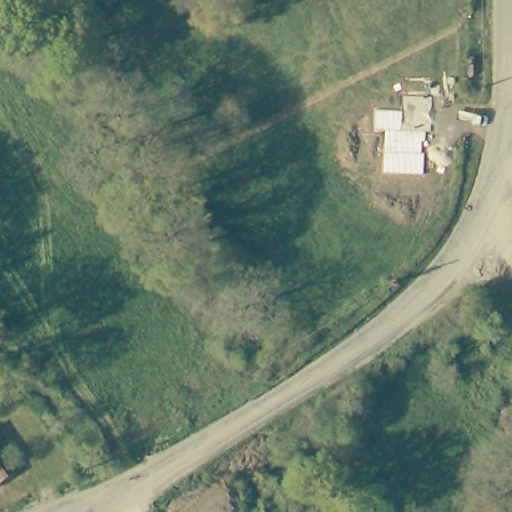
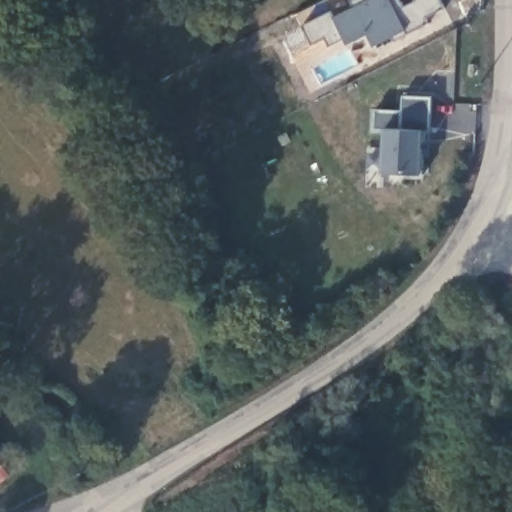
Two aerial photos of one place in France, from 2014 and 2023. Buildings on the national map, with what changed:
new [(426,18),(428,24),(397,40),(396,37),(375,48),(368,35),(347,45),(343,39),(330,47),(325,38),(312,44),(303,25),(331,11),(335,16),(354,6),(352,2),(355,0),(398,0),(402,10),(417,2),(415,0),(438,0),(442,9),(426,18)]
unchanged [(402,112),(403,97),(431,98),(431,131),(423,131),(421,175),(384,173),(386,131),(375,129),(376,111),(402,112)]
unchanged [(0,473),(0,466),(3,471),(0,473)]

